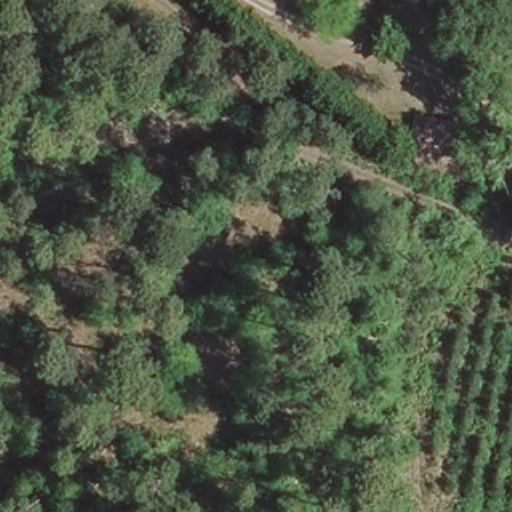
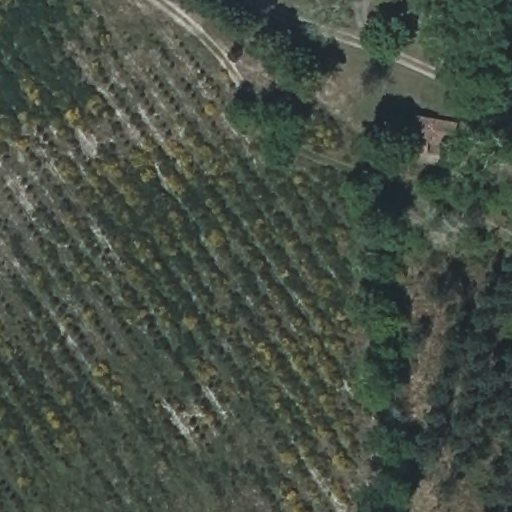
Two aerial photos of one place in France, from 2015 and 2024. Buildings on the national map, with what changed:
unchanged [(437,119),(455,120),(454,134),(437,134),(436,149),(430,148),(421,147),(421,114),(437,114),(437,119)]

